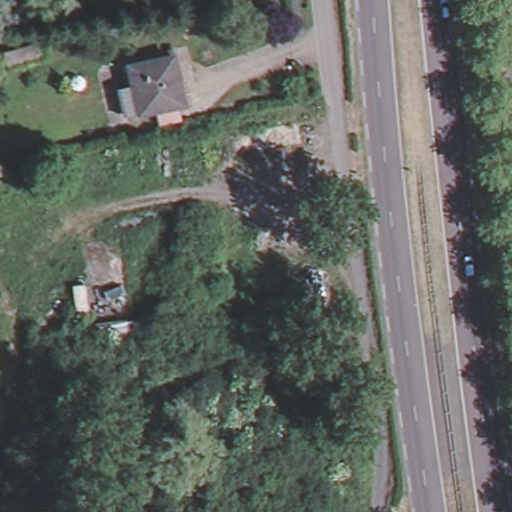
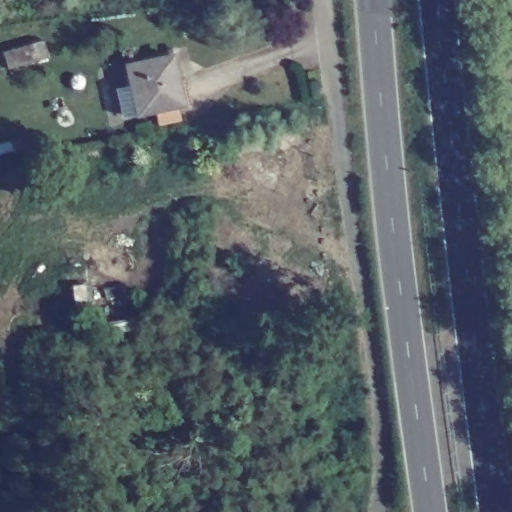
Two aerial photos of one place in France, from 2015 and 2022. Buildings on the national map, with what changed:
unchanged [(47,39),(51,56),(9,66),(5,49),(47,39)]
unchanged [(174,62),(183,105),(140,115),(137,101),(130,101),(127,89),(134,87),(130,68),(145,63),(145,67),(174,62)]

